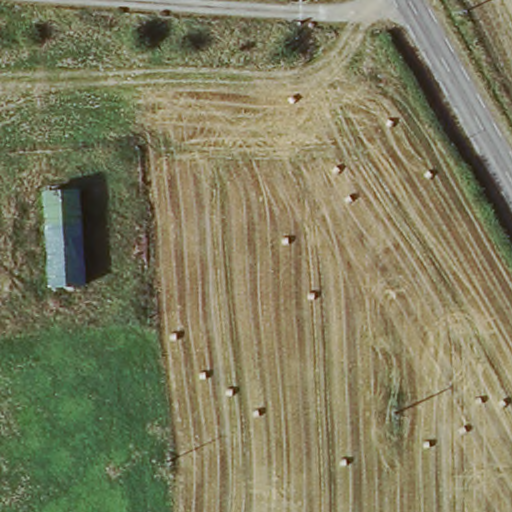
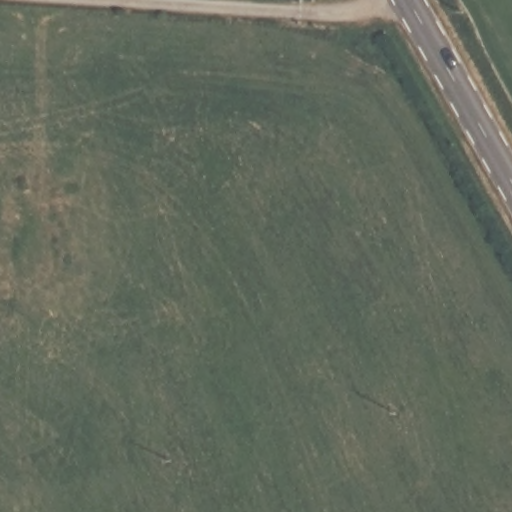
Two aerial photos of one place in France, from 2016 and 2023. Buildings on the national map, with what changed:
demolished [(47,193),(80,192),(83,285),(49,287),(47,193)]

